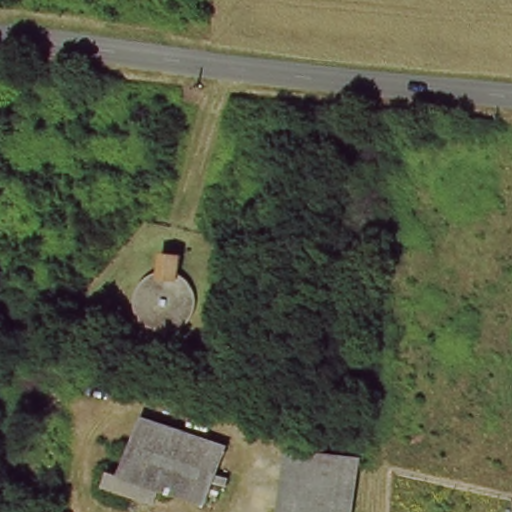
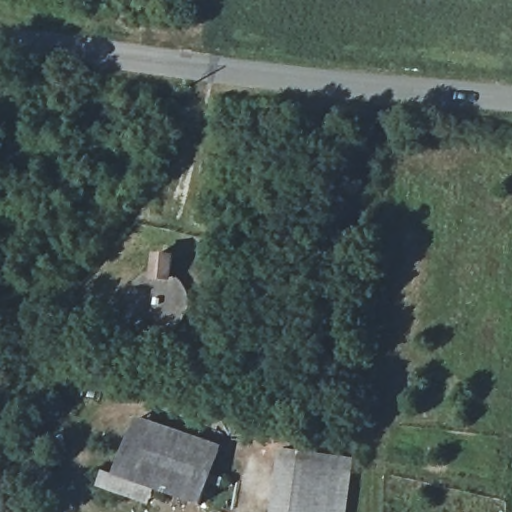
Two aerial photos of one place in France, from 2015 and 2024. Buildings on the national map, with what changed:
unchanged [(145,416),(226,444),(215,474),(134,443),(145,416)]
unchanged [(103,483),(109,466),(125,473),(134,443),(215,474),(206,502),(157,484),(152,499),(103,483)]
unchanged [(284,455),(336,461),(353,463),(349,512),(278,512),(284,455)]

